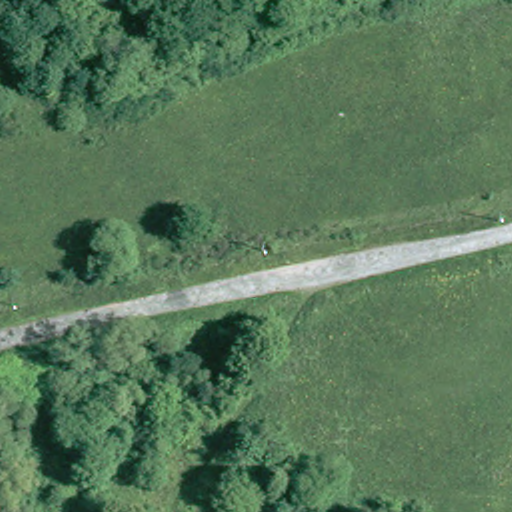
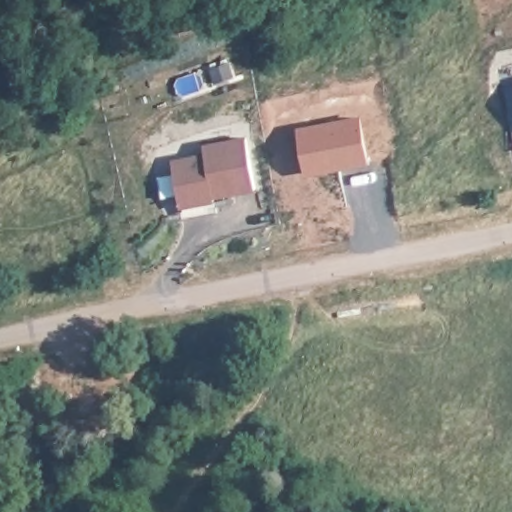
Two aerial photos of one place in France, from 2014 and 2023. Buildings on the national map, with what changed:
new [(229,64),(232,78),(213,82),(210,68),(229,64)]
new [(309,172),(303,167),(297,129),(359,119),(366,163),(334,168),(318,171),(309,172)]
new [(205,152),(204,143),(244,135),(255,188),(213,196),(214,202),(182,207),(172,158),(205,152)]

